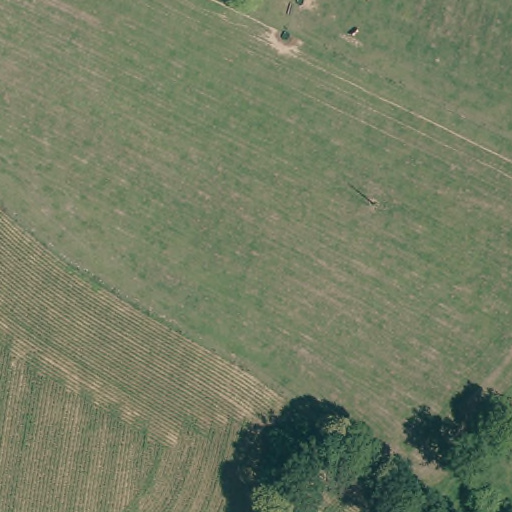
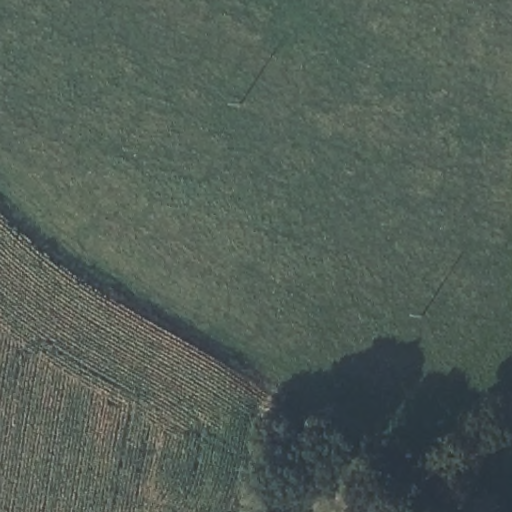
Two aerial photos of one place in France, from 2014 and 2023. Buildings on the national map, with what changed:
[]

